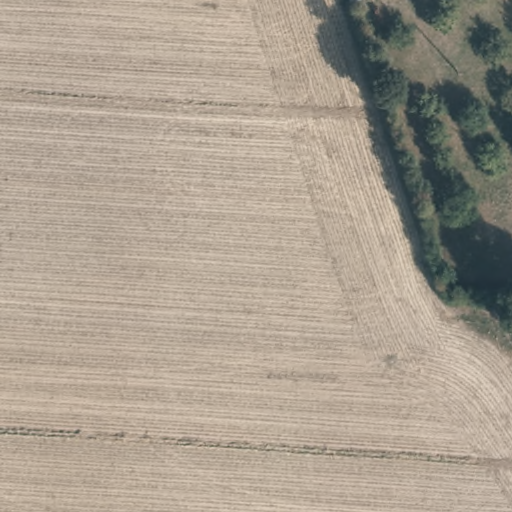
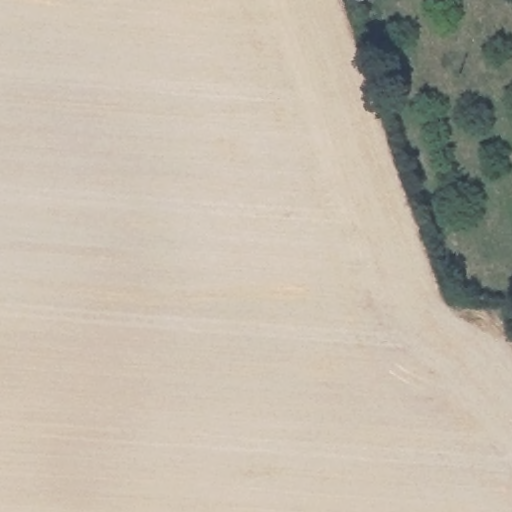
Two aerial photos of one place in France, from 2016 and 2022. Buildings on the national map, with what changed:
unchanged [(349,2),(348,0),(354,0),(349,2)]

